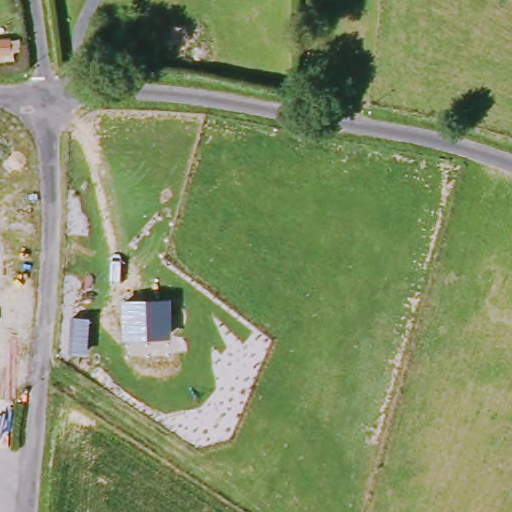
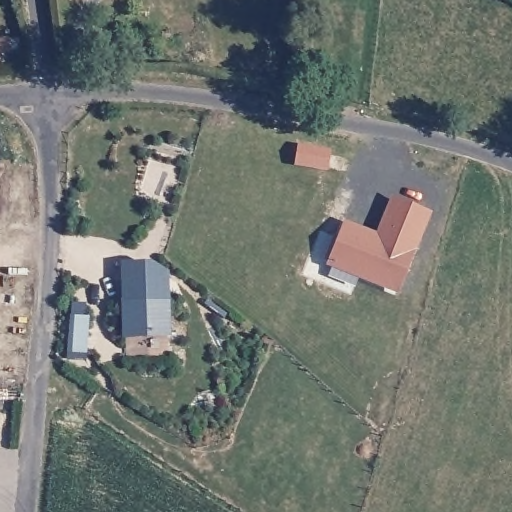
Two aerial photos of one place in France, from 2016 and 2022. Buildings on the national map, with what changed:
unchanged [(16,50),(0,53),(0,39),(14,36),(16,50)]
new [(346,221),(377,233),(393,196),(433,213),(399,294),(328,264),(346,221)]
unchanged [(171,338),(123,339),(121,301),(170,299),(171,338)]
demolished [(53,376),(73,389),(67,398),(52,389),(45,385),(46,372),(53,376)]

